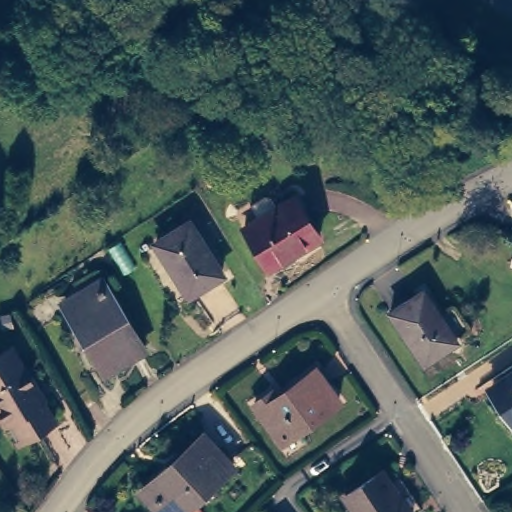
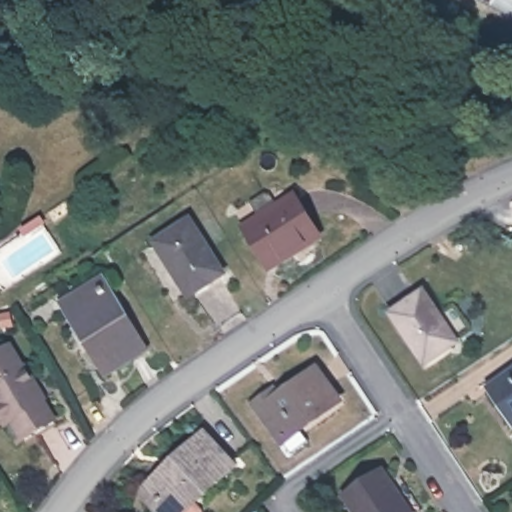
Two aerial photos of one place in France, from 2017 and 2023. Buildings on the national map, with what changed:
unchanged [(321,237),(298,251),(294,244),(268,259),(246,224),(295,194),(321,237)]
unchanged [(226,275),(193,297),(158,246),(191,224),(226,275)]
unchanged [(110,373),(86,336),(67,303),(104,280),(109,288),(148,349),(110,373)]
unchanged [(462,343),(429,364),(396,313),(429,292),(462,343)]
unchanged [(22,372),(25,371),(38,391),(35,393),(53,422),(18,444),(0,416),(0,355),(8,349),(22,372)]
unchanged [(343,404),(284,443),(259,405),(278,392),(281,397),(320,371),(343,404)]
unchanged [(490,388),(512,373),(512,423),(490,388)]
unchanged [(149,490),(206,438),(235,469),(189,512),(157,512),(143,496),(149,490)]
unchanged [(361,512),(349,495),(387,470),(415,512),(361,512)]

